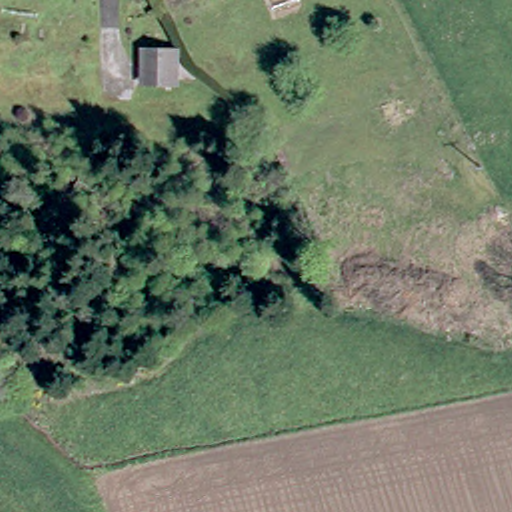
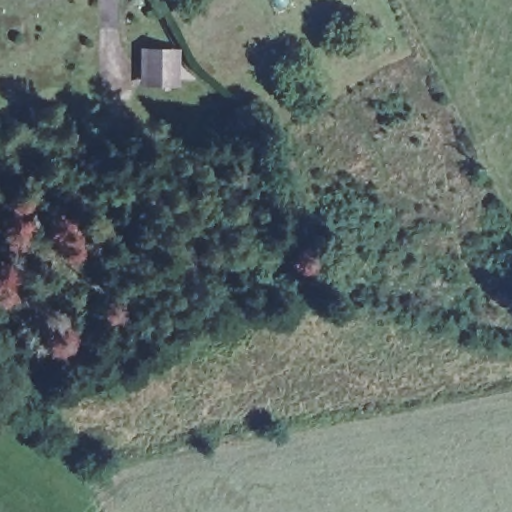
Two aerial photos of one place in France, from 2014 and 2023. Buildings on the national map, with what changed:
unchanged [(172,80),(145,79),(145,49),(174,49),(172,80)]

